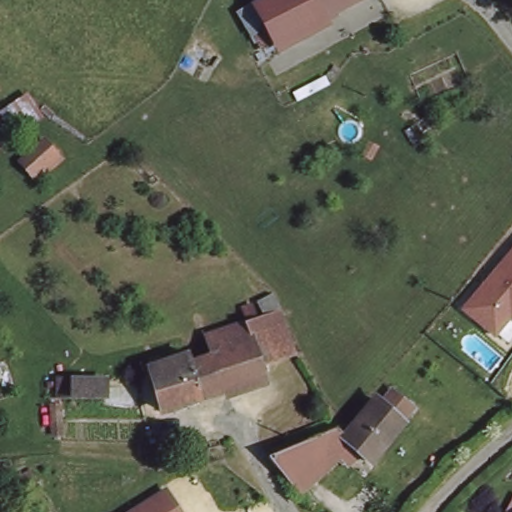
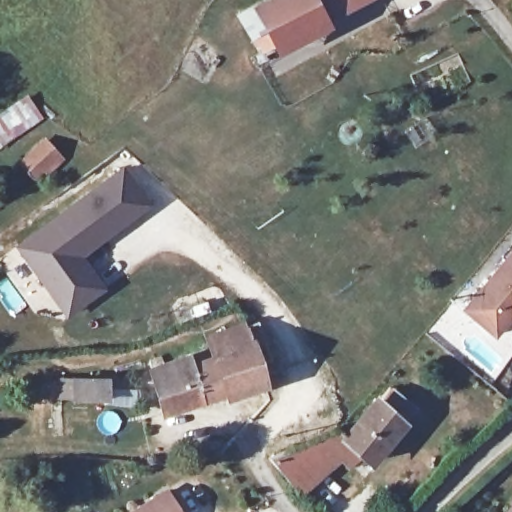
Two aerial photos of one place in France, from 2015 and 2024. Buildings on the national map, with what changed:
unchanged [(359,8),(282,44),(264,0),(265,0),(356,0),(359,8)]
unchanged [(359,8),(356,0),(376,0),(359,8)]
unchanged [(0,147),(0,114),(30,95),(41,123),(0,147)]
unchanged [(58,154),(29,178),(15,164),(44,139),(58,154)]
new [(119,165),(147,205),(75,255),(98,290),(60,316),(10,242),(119,165)]
unchanged [(497,336),(464,310),(512,252),(512,318),(497,336)]
unchanged [(154,416),(145,360),(162,358),(162,362),(187,355),(190,361),(205,356),(199,337),(253,326),(270,386),(207,405),(190,410),(154,416)]
unchanged [(103,406),(66,406),(65,380),(99,381),(103,406)]
unchanged [(339,433),(372,391),(408,422),(365,471),(348,456),(298,497),(266,458),(339,433)]
unchanged [(178,512),(123,512),(162,487),(178,512)]

